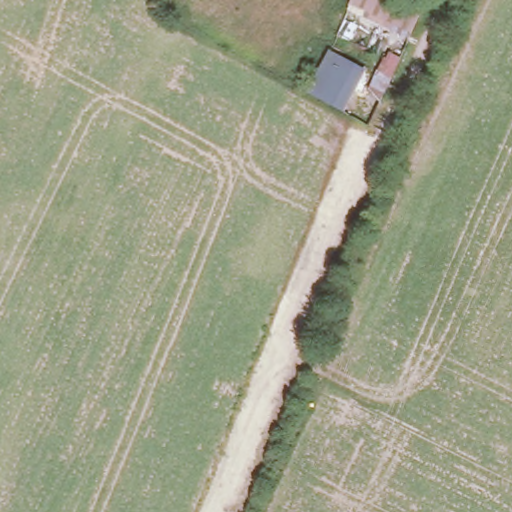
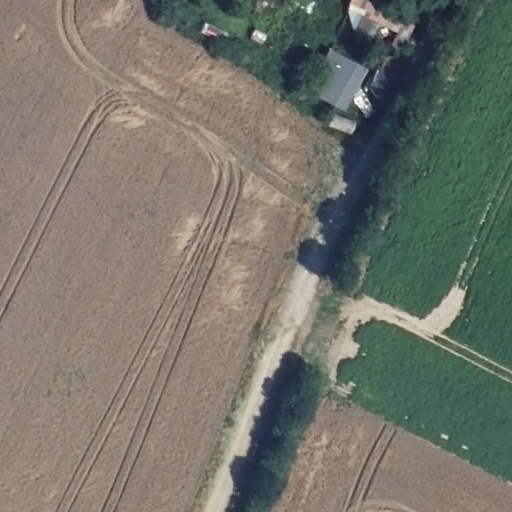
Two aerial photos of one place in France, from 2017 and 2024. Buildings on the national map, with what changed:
unchanged [(395,0),(420,11),(410,35),(347,5),(349,0),(395,0)]
unchanged [(325,45),(365,67),(342,108),(301,89),(325,45)]

